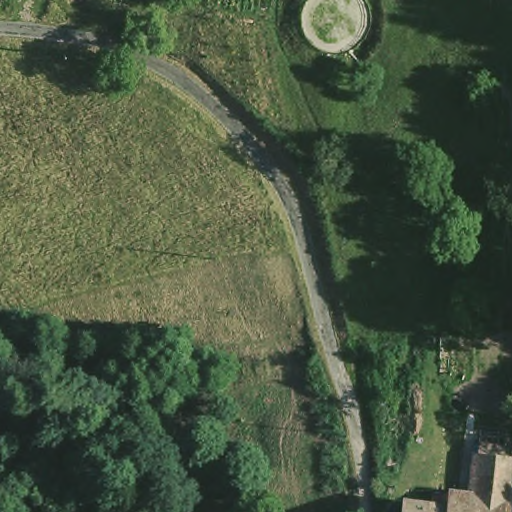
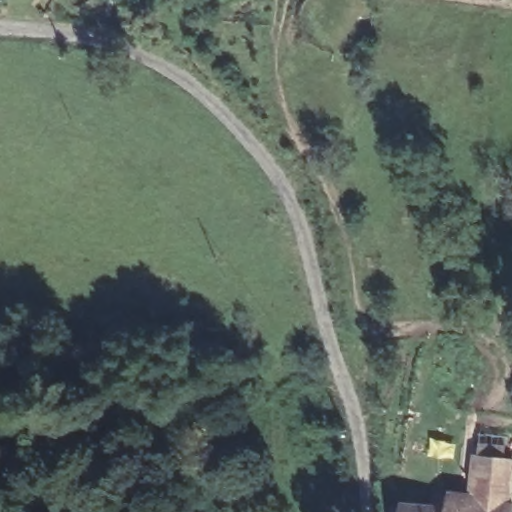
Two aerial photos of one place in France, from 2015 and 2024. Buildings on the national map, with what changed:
unchanged [(431,511),(432,500),(448,502),(449,490),(467,492),(475,492),(479,461),(512,465),(512,470),(507,509),(506,512),(403,512),(404,508),(431,511)]

